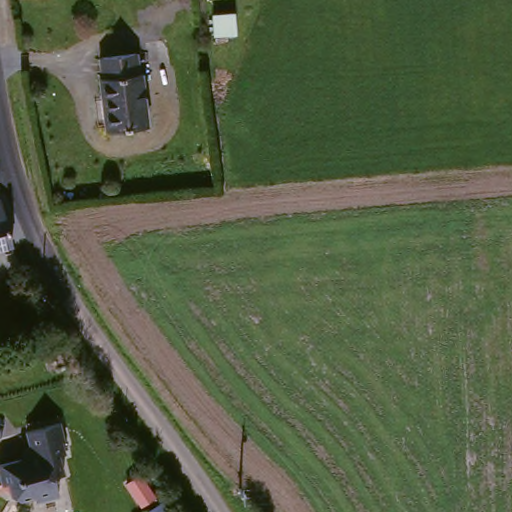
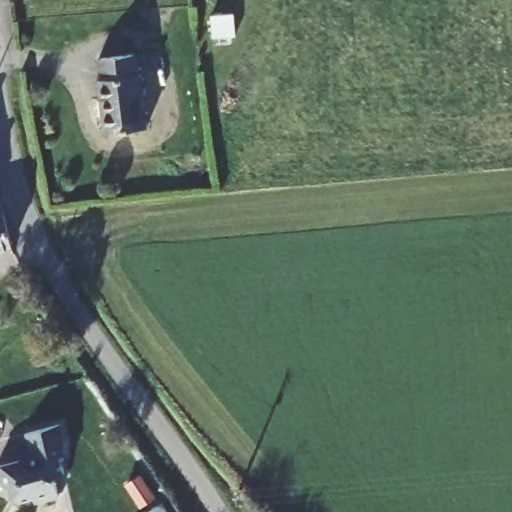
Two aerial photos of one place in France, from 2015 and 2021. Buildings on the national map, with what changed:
unchanged [(137,51),(140,68),(142,69),(149,122),(110,127),(103,73),(104,70),(101,54),(137,51)]
unchanged [(2,197),(12,246),(0,249),(0,198),(2,197)]
unchanged [(65,447),(59,449),(65,467),(55,470),(60,489),(37,496),(36,490),(21,495),(12,490),(9,478),(3,480),(0,470),(0,461),(27,453),(31,445),(26,427),(59,417),(65,435),(62,436),(65,447)]

